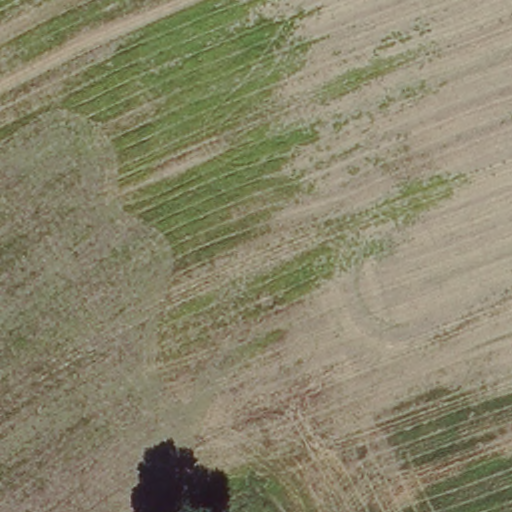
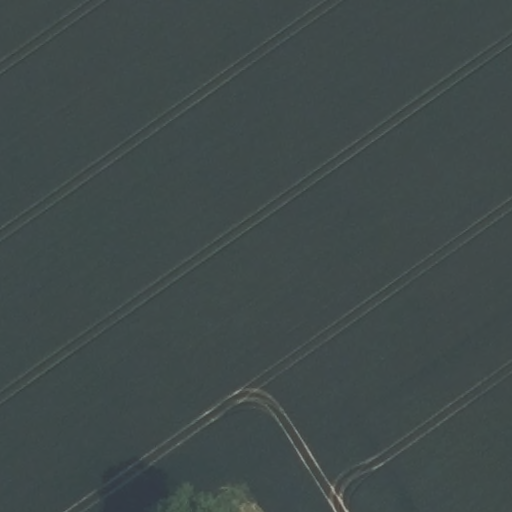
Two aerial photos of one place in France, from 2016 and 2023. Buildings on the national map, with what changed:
[]

